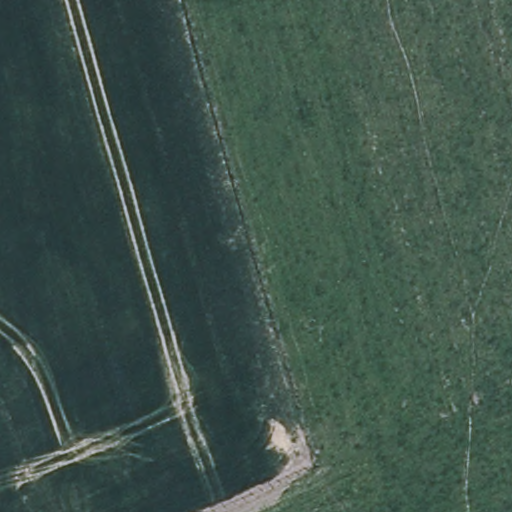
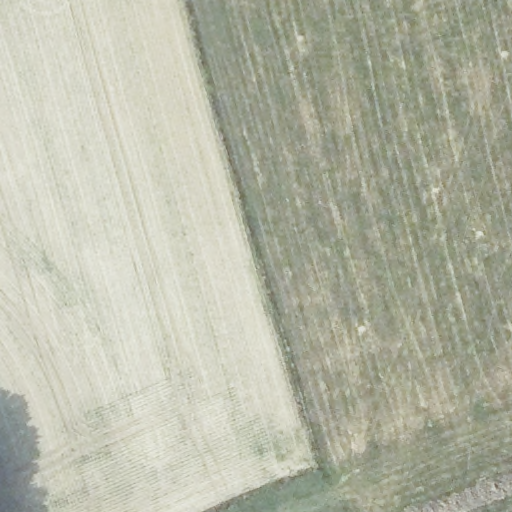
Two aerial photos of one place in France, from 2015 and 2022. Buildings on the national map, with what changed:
[]

